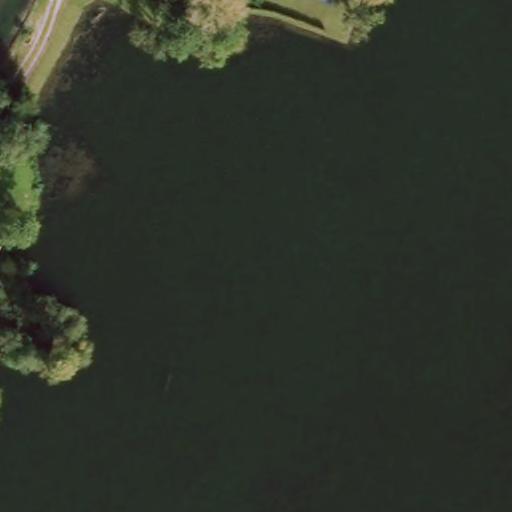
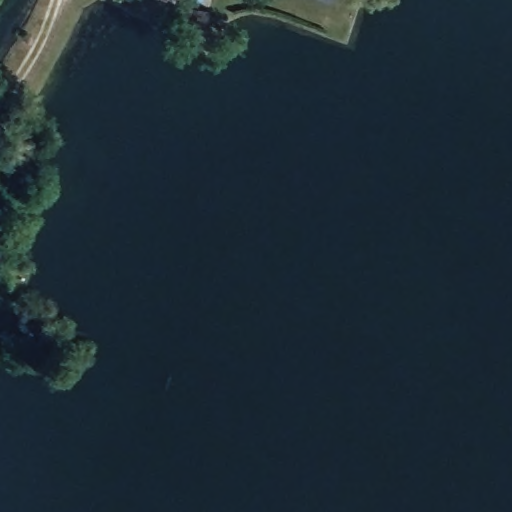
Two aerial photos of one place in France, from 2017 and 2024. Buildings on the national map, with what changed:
unchanged [(337,4),(327,0),(339,0),(337,4)]

